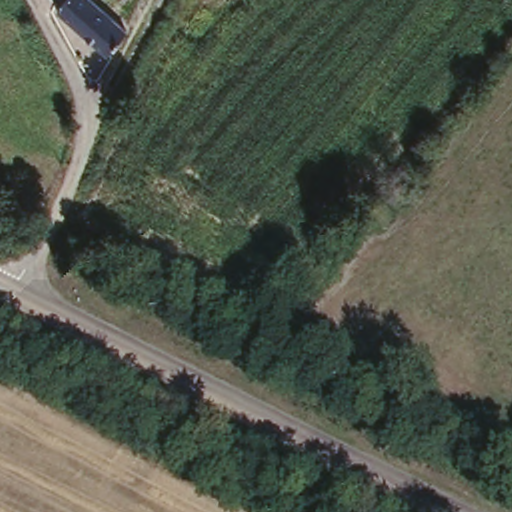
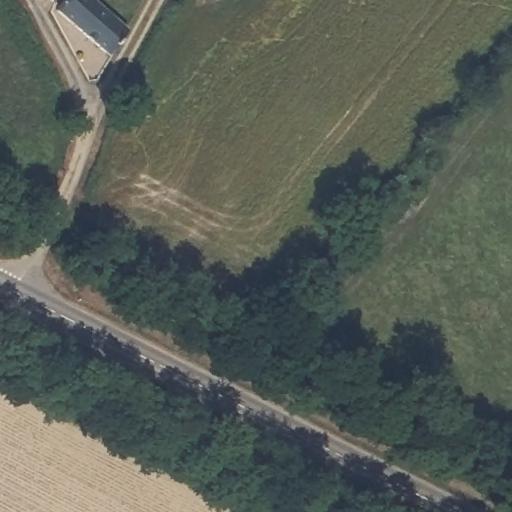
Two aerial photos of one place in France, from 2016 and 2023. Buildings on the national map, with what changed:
unchanged [(127,25),(101,52),(55,2),(57,0),(101,0),(127,25)]

